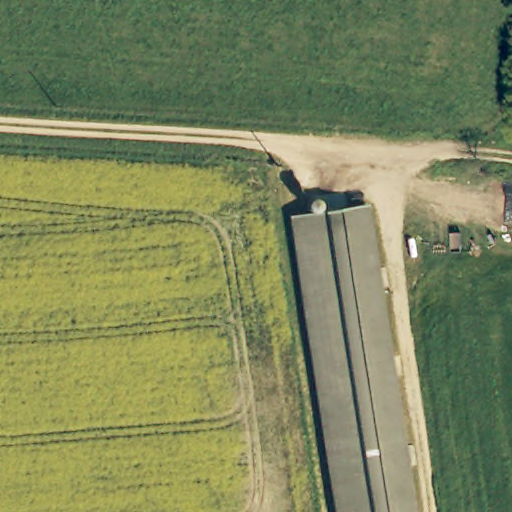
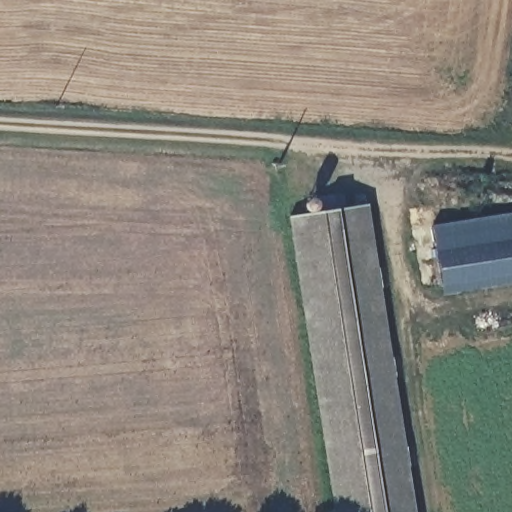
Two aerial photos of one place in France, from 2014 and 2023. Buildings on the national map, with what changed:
unchanged [(414,512),(335,512),(289,217),(365,205),(414,512)]
new [(512,284),(442,295),(432,226),(512,213),(512,284)]

